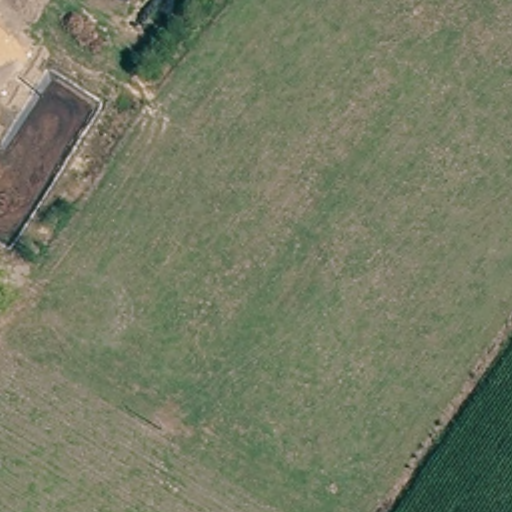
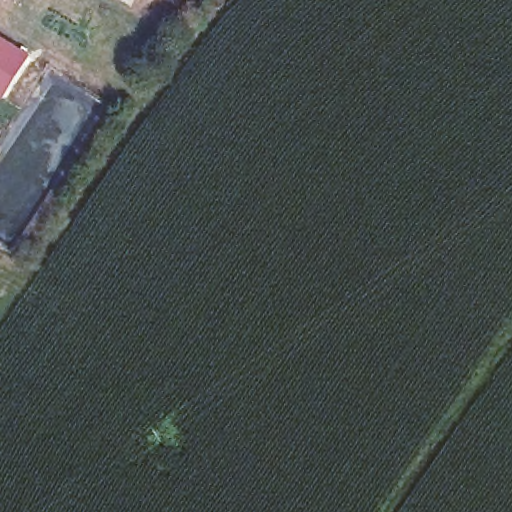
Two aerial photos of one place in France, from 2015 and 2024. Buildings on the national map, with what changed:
new [(30,56),(5,97),(0,94),(0,36),(30,56)]

